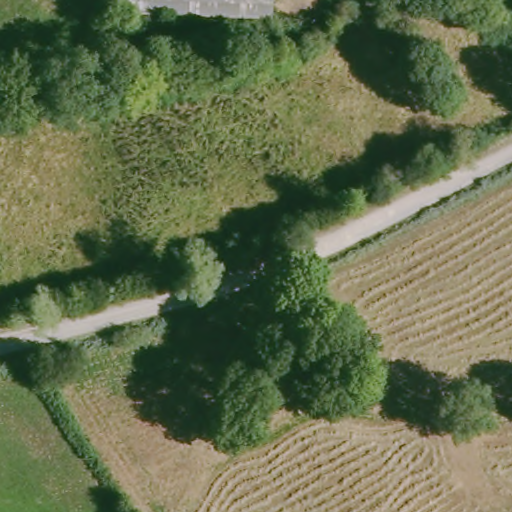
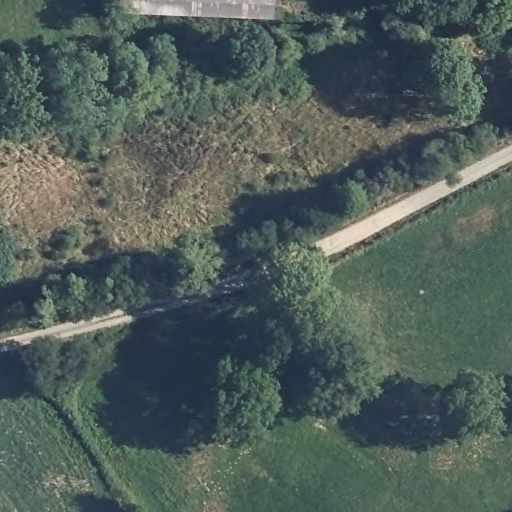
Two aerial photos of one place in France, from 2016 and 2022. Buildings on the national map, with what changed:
unchanged [(107,18),(108,0),(277,0),(276,22),(107,18)]

